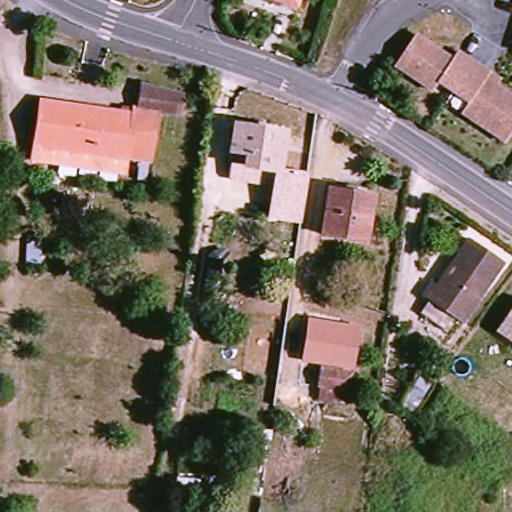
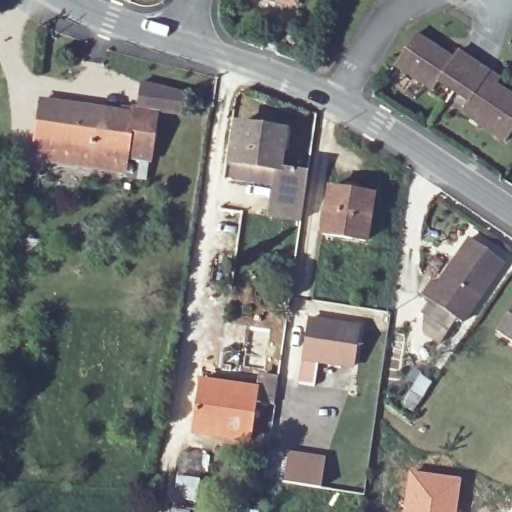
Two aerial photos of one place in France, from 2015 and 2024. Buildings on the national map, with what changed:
unchanged [(266,0),(298,0),(294,10),(266,0)]
unchanged [(452,56),(457,50),(499,77),(496,84),(512,94),(512,132),(506,141),(463,115),(470,103),(439,81),(432,89),(392,65),(416,32),(452,56)]
unchanged [(144,90),(133,159),(119,157),(30,145),(35,105),(125,119),(131,87),(144,90)]
unchanged [(174,95),(172,117),(150,115),(143,160),(133,159),(144,90),(174,95)]
unchanged [(244,167),(246,155),(231,152),(235,126),(282,133),(277,171),(251,168),(244,167)]
unchanged [(119,157),(116,172),(28,160),(30,145),(119,157)]
unchanged [(307,175),(301,225),(269,220),(272,187),(230,181),(232,165),(244,167),(251,168),(277,171),(307,175)]
unchanged [(369,238),(323,230),(329,185),(376,193),(369,238)]
unchanged [(465,322),(422,295),(431,280),(438,285),(471,239),(505,262),(465,322)]
unchanged [(501,332),(512,316),(512,341),(501,332)]
unchanged [(353,368),(303,360),(309,322),(358,329),(353,368)]
demolished [(318,401),(320,387),(299,384),(300,374),(310,375),(311,366),(351,373),(347,405),(318,401)]
new [(412,385),(404,380),(413,367),(433,382),(413,412),(400,403),(412,385)]
new [(259,386),(260,373),(278,375),(274,402),(257,399),(252,435),(192,427),(199,378),(259,386)]
new [(285,452),(323,457),(319,486),(281,481),(285,452)]
new [(408,470),(462,477),(457,512),(402,512),(408,470)]

